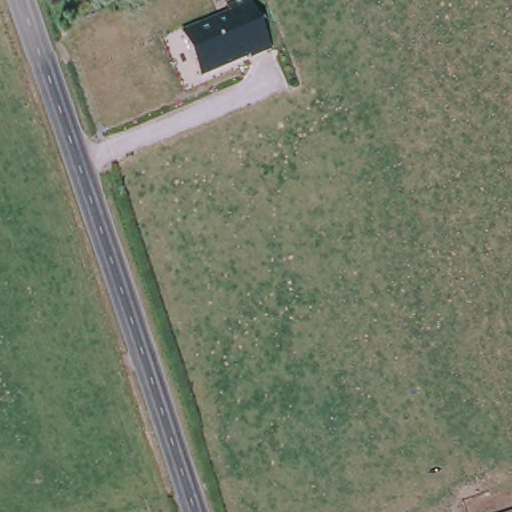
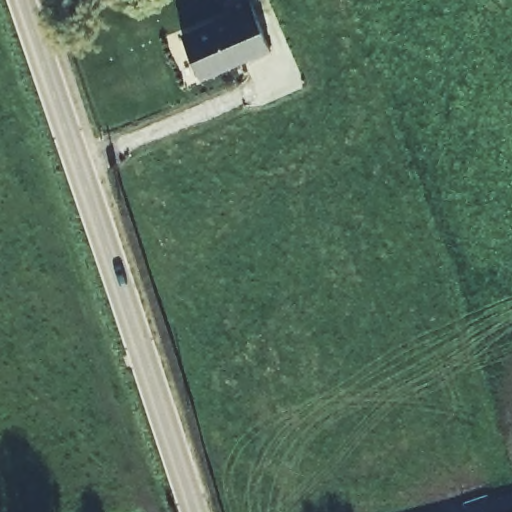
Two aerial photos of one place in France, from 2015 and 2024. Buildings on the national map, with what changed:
unchanged [(247,54),(245,50),(197,69),(180,25),(242,0),(249,0),(268,46),(247,54)]

